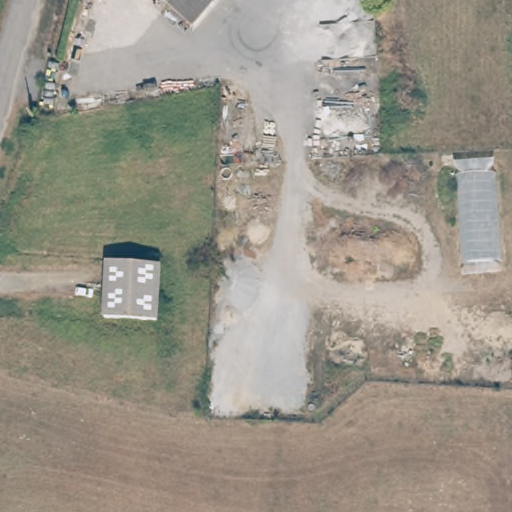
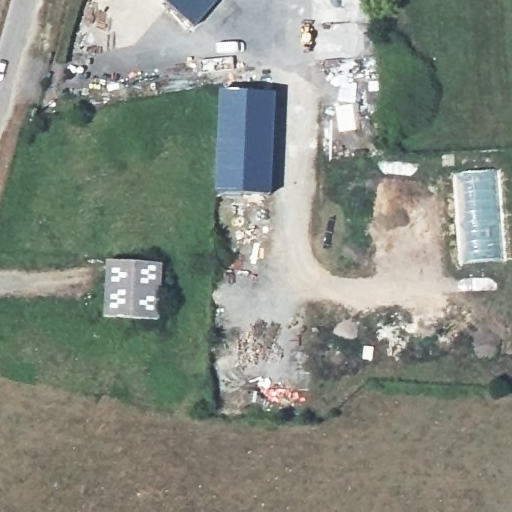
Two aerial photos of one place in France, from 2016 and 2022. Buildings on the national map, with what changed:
unchanged [(163,0),(169,0),(166,3),(163,0)]
unchanged [(213,0),(190,26),(166,3),(169,0),(213,0)]
new [(274,94),(270,195),(215,193),(219,92),(274,94)]
unchanged [(493,174),(500,262),(463,265),(457,177),(493,174)]
unchanged [(156,256),(161,311),(108,316),(104,261),(156,256)]

